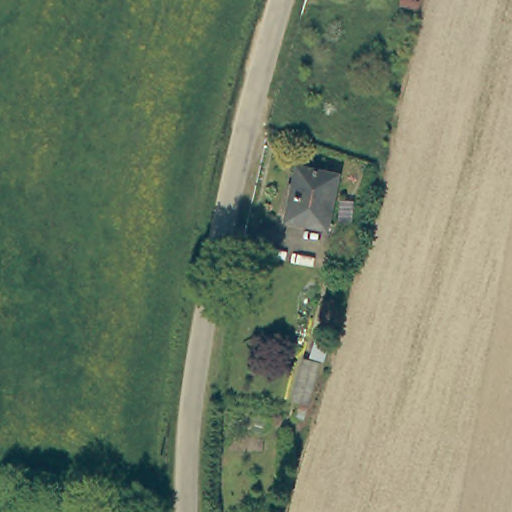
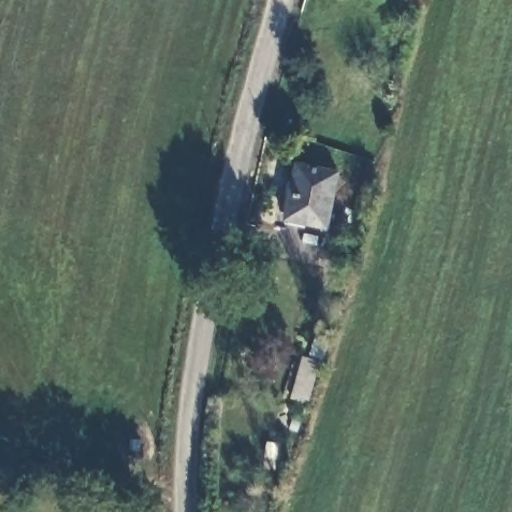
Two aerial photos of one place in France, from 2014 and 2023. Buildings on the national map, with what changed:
unchanged [(290,217),(303,159),(342,169),(329,227),(290,217)]
unchanged [(305,409),(284,403),(298,359),(317,365),(305,409)]

